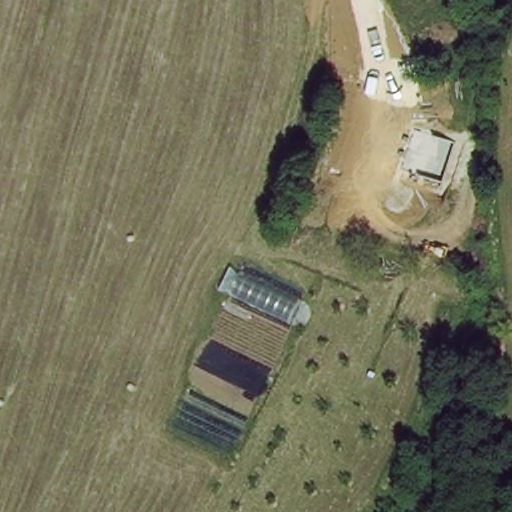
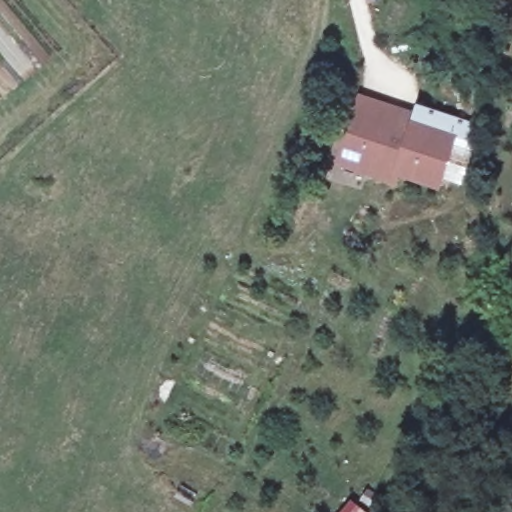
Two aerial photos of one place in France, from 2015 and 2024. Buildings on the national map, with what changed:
new [(457,136),(440,192),(398,178),(397,187),(336,167),(358,95),(420,114),(417,123),(457,136)]

